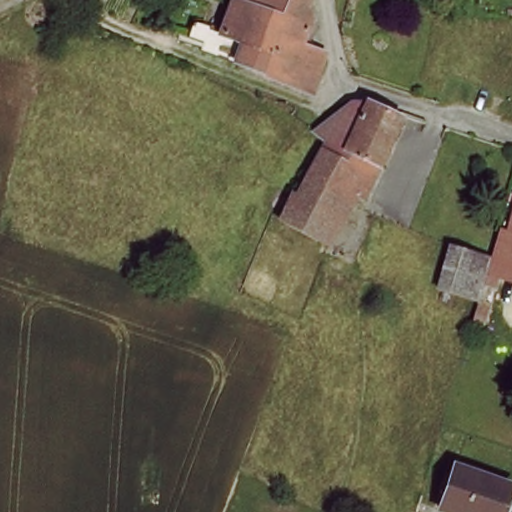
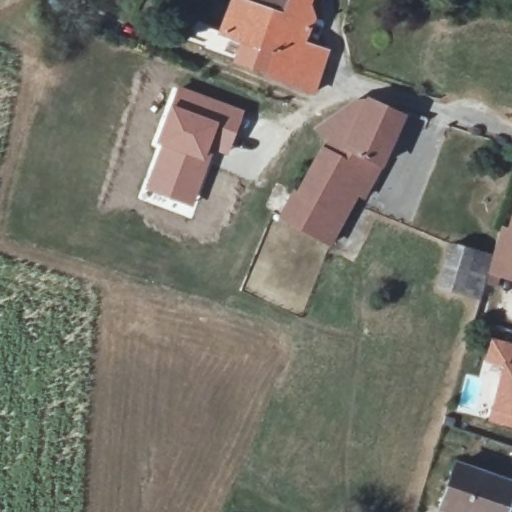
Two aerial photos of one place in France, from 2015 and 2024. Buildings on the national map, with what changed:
unchanged [(308,30),(331,38),(315,80),(298,74),(282,68),(284,65),(251,52),(256,36),(223,24),(233,0),(265,0),(284,8),(287,0),(314,0),(316,6),(308,30)]
unchanged [(265,0),(287,0),(284,8),(265,0)]
new [(158,146),(153,145),(176,86),(244,110),(228,156),(213,152),(193,208),(143,189),(158,146)]
unchanged [(360,198),(353,194),(331,249),(278,224),(291,197),(296,199),(328,145),(315,135),(347,114),(353,109),(368,108),(402,121),(360,198)]
new [(512,216),(512,282),(499,278),(498,288),(487,284),(481,303),(438,289),(452,242),(493,256),(503,226),(509,228),(512,216)]
demolished [(504,282),(489,330),(478,328),(489,289),(498,259),(501,248),(510,217),(512,217),(512,284),(504,282)]
demolished [(469,284),(448,279),(461,235),(482,242),(469,284)]
new [(512,344),(512,428),(489,422),(493,409),(503,368),(487,363),(492,339),(512,344)]
unchanged [(510,485),(502,512),(442,512),(454,470),(510,485)]

